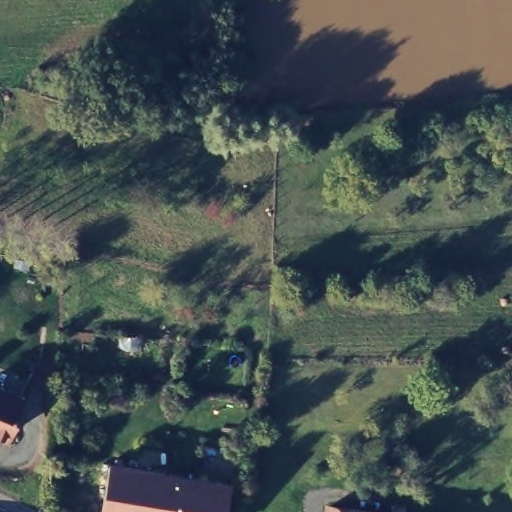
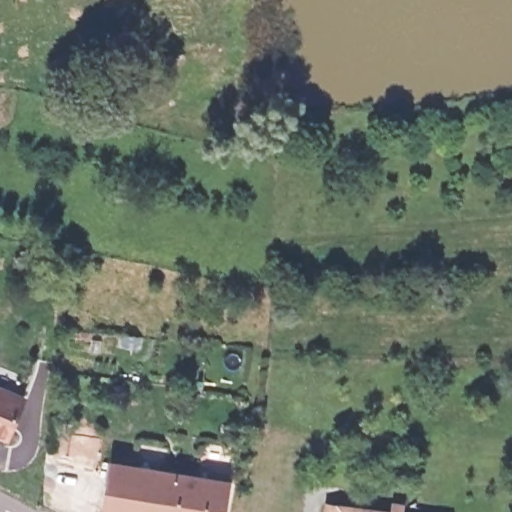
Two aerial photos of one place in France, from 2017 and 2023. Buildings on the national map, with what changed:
unchanged [(0,433),(0,388),(25,399),(9,437),(0,433)]
unchanged [(97,509),(105,458),(110,459),(110,455),(117,456),(117,460),(225,478),(219,512),(96,512),(97,509)]
unchanged [(330,501),(394,509),(395,499),(403,501),(401,512),(329,512),(330,501)]

